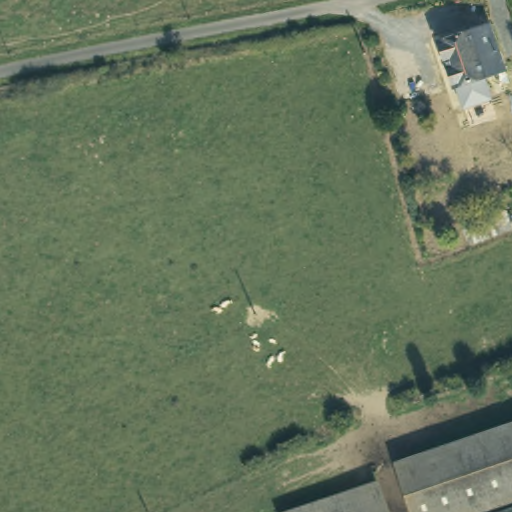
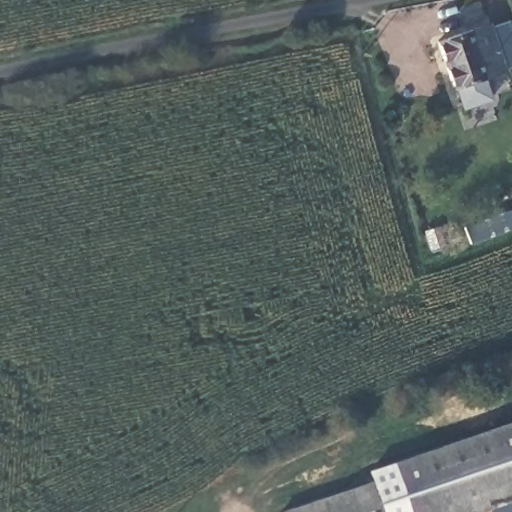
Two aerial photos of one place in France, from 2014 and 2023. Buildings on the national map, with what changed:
unchanged [(503,71),(473,81),(476,90),(458,95),(456,87),(450,87),(436,44),(487,26),(503,71)]
unchanged [(469,246),(463,227),(505,212),(510,231),(469,246)]
unchanged [(512,487),(439,512),(409,512),(394,466),(512,427),(512,487)]
unchanged [(387,512),(288,512),(376,483),(387,512)]

